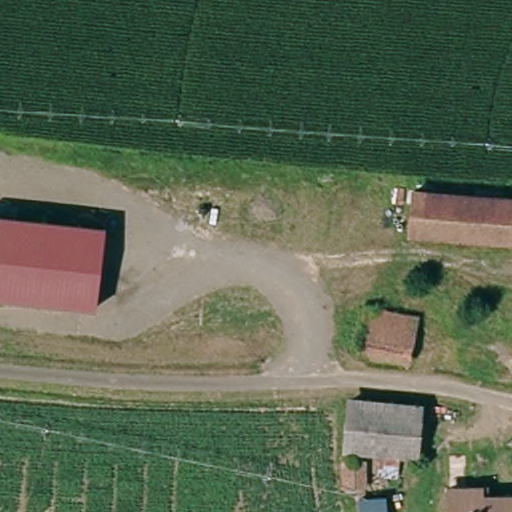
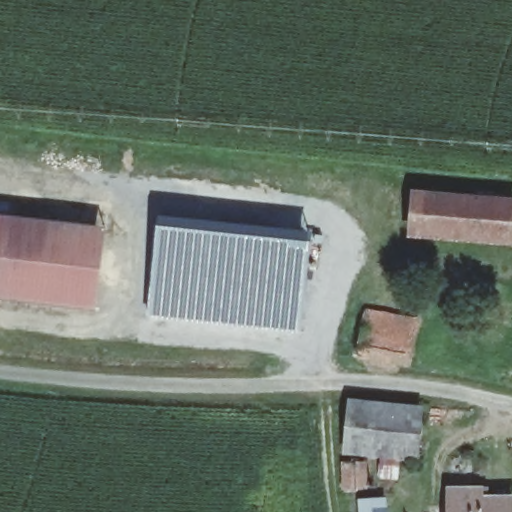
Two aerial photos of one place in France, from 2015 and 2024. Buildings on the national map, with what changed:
unchanged [(416,194),(512,203),(507,240),(412,232),(413,219),(416,194)]
unchanged [(100,293),(98,312),(0,301),(0,214),(108,225),(100,293)]
new [(162,215),(313,233),(301,334),(151,315),(162,215)]
unchanged [(409,318),(406,345),(357,339),(360,314),(409,318)]
unchanged [(404,366),(355,359),(357,339),(406,345),(404,366)]
unchanged [(398,461),(396,483),(370,481),(372,459),(349,459),(349,464),(366,465),(367,484),(352,484),(352,495),(334,493),(336,458),(342,401),(419,408),(414,462),(398,461)]
new [(387,497),(387,512),(359,512),(358,499),(387,497)]
unchanged [(447,498),(512,501),(512,512),(447,512),(447,498)]

